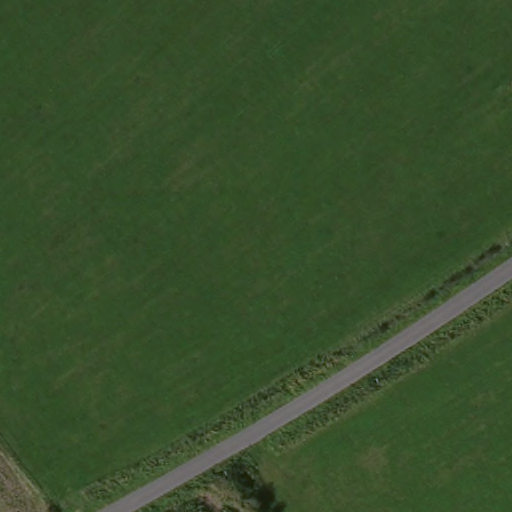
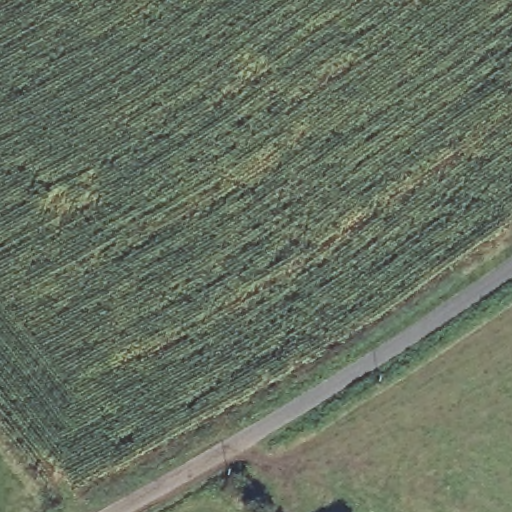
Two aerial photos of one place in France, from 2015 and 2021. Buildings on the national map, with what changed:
[]

